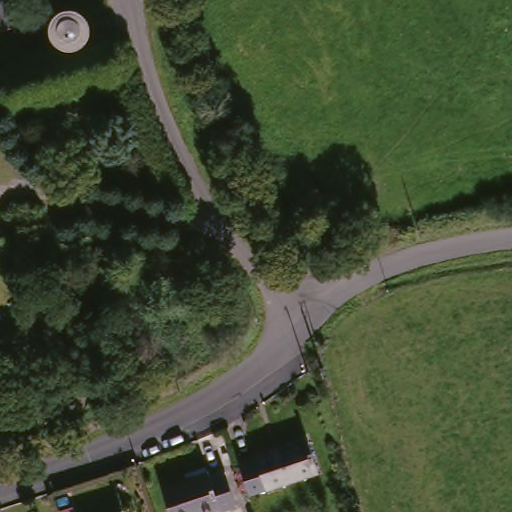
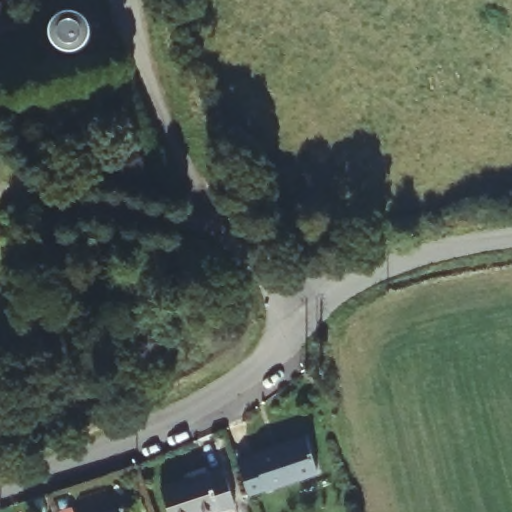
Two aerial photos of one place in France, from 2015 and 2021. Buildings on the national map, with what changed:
unchanged [(17,2),(2,6),(0,7),(0,0),(17,0),(17,2)]
unchanged [(0,27),(0,7),(2,6),(17,2),(22,20),(0,27)]
unchanged [(249,497),(237,463),(254,458),(305,440),(317,475),(265,493),(265,491),(249,497)]
unchanged [(214,506),(194,512),(165,512),(155,485),(202,469),(204,475),(219,470),(230,503),(215,508),(214,506)]

